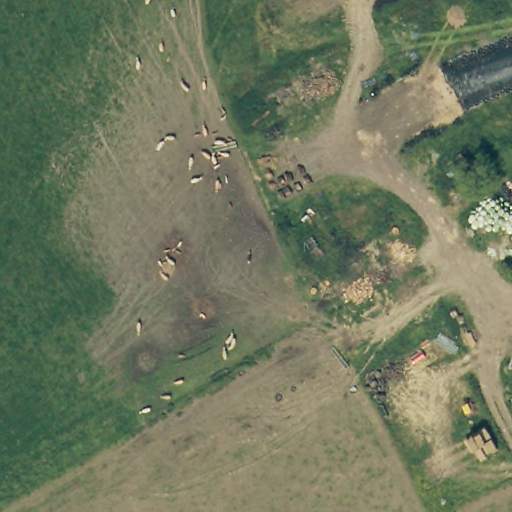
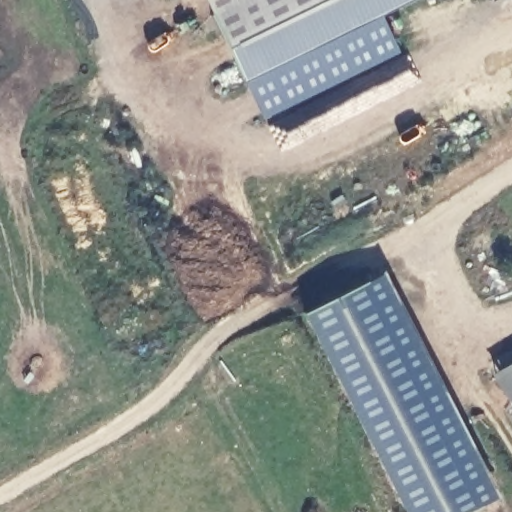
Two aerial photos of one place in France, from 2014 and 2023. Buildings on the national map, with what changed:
new [(400,53),(263,119),(205,0),(414,0),(383,15),(400,53)]
new [(499,498),(471,512),(406,512),(307,314),(386,275),(499,498)]
new [(491,376),(512,363),(512,410),(491,376)]

